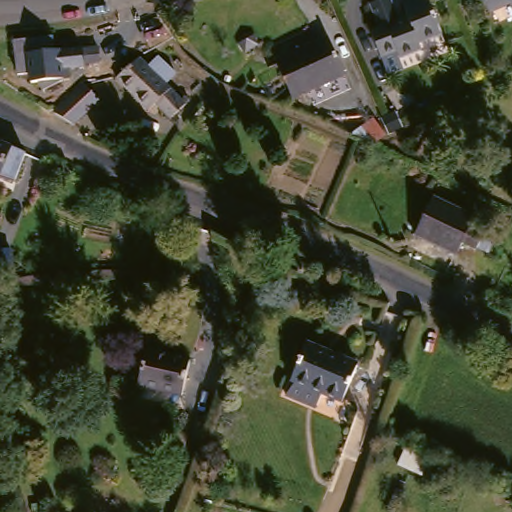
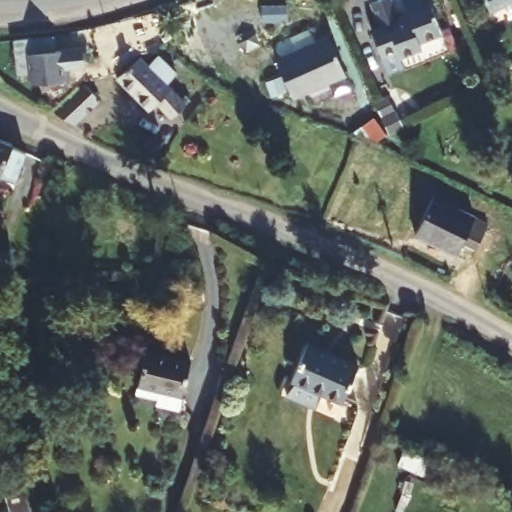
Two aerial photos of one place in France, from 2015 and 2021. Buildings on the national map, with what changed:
unchanged [(419,35),(421,42),(400,50),(397,43),(381,49),(372,24),(380,21),(372,0),(392,0),(398,13),(411,8),(407,0),(430,0),(441,27),(419,35)]
unchanged [(507,7),(488,17),(480,0),(512,0),(512,15),(511,15),(507,7)]
unchanged [(348,72),(297,93),(281,56),(333,33),(348,72)]
unchanged [(86,65),(65,68),(65,81),(29,81),(29,74),(16,74),(14,39),(56,36),(58,48),(99,46),(101,59),(86,65)]
unchanged [(204,93),(186,110),(171,94),(164,102),(133,67),(160,46),(204,93)]
unchanged [(105,95),(78,120),(60,103),(87,77),(105,95)]
unchanged [(14,171),(3,166),(0,173),(0,138),(24,148),(14,171)]
unchanged [(487,249),(475,244),(470,253),(434,234),(422,228),(442,188),(454,196),(505,222),(487,249)]
unchanged [(15,260),(5,261),(0,262),(0,237),(12,235),(15,260)]
unchanged [(368,355),(353,392),(332,383),(326,398),(296,385),(318,334),(368,355)]
unchanged [(151,345),(195,356),(188,392),(143,380),(151,345)]
unchanged [(19,483),(28,512),(12,512),(4,488),(19,483)]

